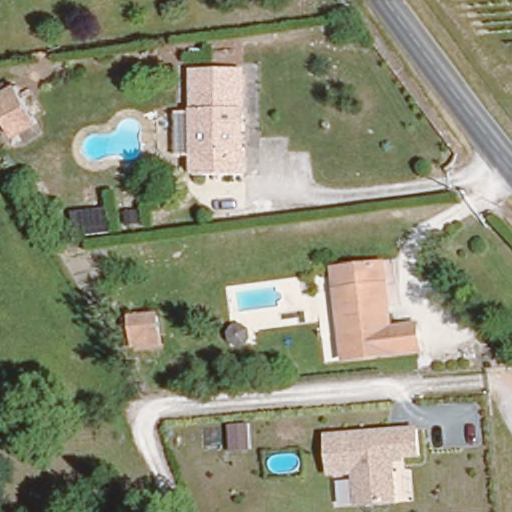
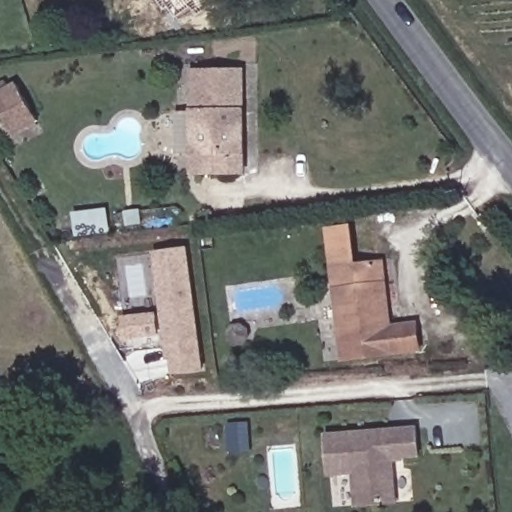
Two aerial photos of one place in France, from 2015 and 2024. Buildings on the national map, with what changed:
unchanged [(193,112),(191,71),(242,66),(249,173),(198,175),(196,153),(184,152),(181,113),(193,112)]
unchanged [(0,89),(10,82),(32,118),(10,132),(0,115),(0,89)]
new [(159,311),(151,253),(188,248),(204,369),(171,374),(162,337),(133,341),(129,315),(159,311)]
unchanged [(414,320),(418,347),(345,357),(330,266),(374,259),(384,323),(414,320)]
demolished [(135,323),(158,320),(161,336),(136,338),(135,323)]
unchanged [(413,426),(416,453),(400,454),(401,457),(384,458),(385,463),(385,467),(391,469),(394,500),(355,504),(352,471),(328,473),(327,469),(324,434),(413,426)]

